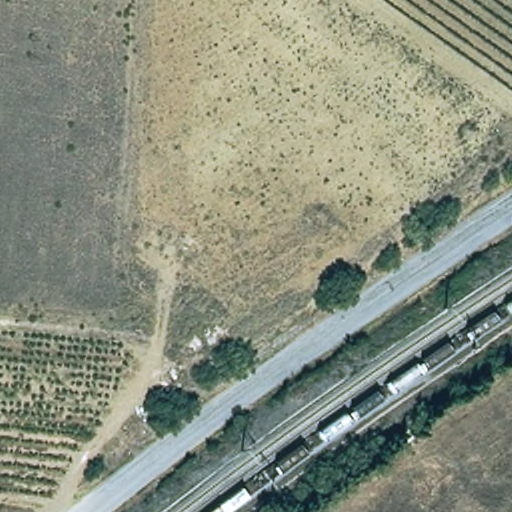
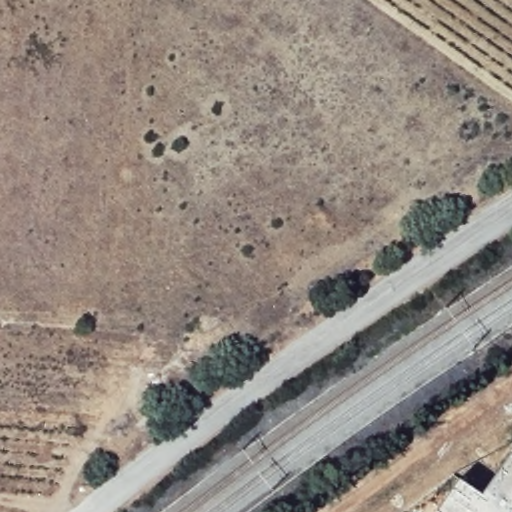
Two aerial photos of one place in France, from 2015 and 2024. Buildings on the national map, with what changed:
new [(457,480),(481,495),(487,486),(509,454),(512,456),(512,512),(436,512),(457,480)]

